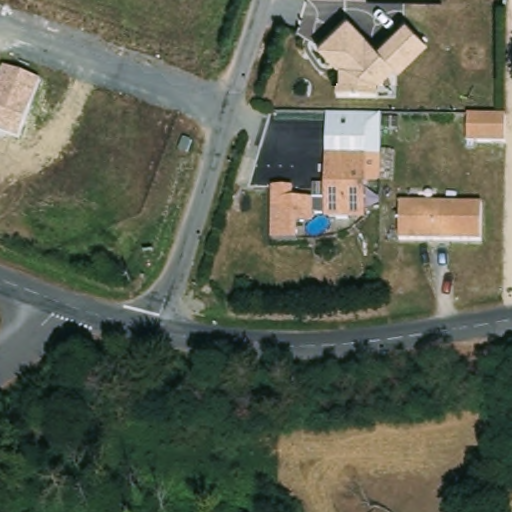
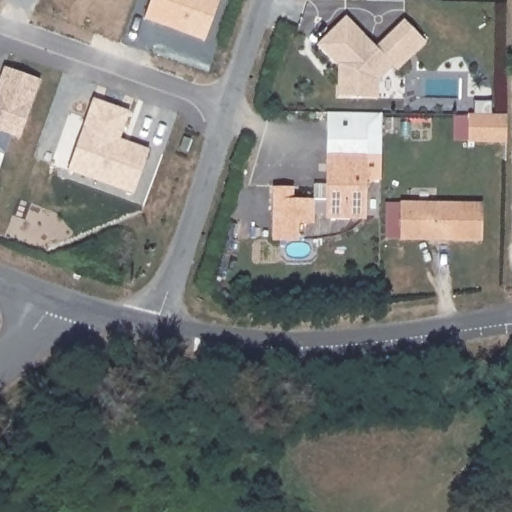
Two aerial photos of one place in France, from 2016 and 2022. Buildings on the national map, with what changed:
unchanged [(425,41),(395,70),(391,67),(378,80),(378,99),(337,98),(337,69),(314,45),(346,14),(375,45),(403,17),(425,41)]
unchanged [(3,67),(40,81),(19,137),(0,130),(0,77),(3,67)]
new [(128,111),(119,138),(148,149),(132,194),(67,170),(92,97),(128,111)]
unchanged [(326,111),(383,112),(381,180),(365,180),(365,156),(325,156),(326,111)]
unchanged [(509,115),(505,142),(465,142),(468,112),(509,115)]
unchanged [(309,225),(296,225),(296,242),(272,242),(272,188),(292,189),(292,200),(325,201),(325,156),(365,156),(364,210),(364,220),(354,220),(329,220),(324,220),(319,215),(312,215),(312,225),(309,225)]
unchanged [(481,201),(477,239),(398,236),(400,201),(481,201)]

